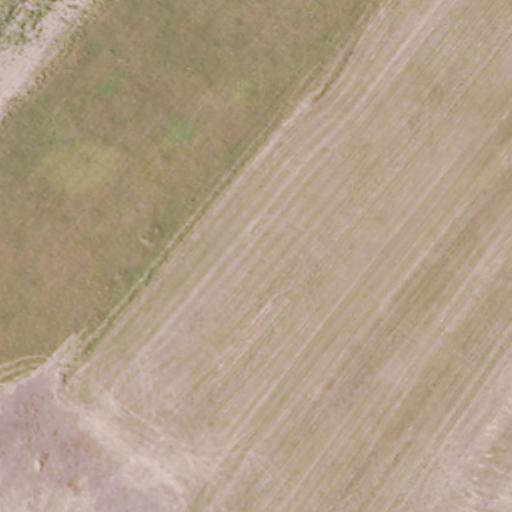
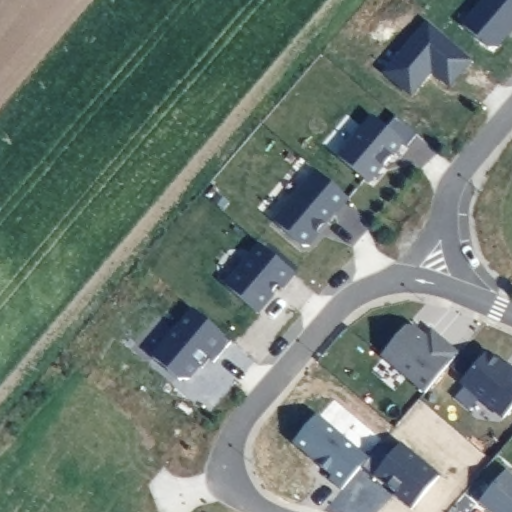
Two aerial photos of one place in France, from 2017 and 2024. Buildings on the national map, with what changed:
new [(482,0),(512,0),(512,33),(500,49),(487,48),(462,24),(482,0)]
new [(384,73),(427,21),(474,61),(449,89),(432,74),(412,98),(384,73)]
new [(339,155),(372,115),(389,129),(397,119),(417,136),(406,149),(403,145),(370,185),(339,155)]
new [(275,222),(317,173),(350,200),(337,215),(335,213),(317,233),(320,238),(311,248),(302,247),(275,222)]
new [(270,295),(272,297),(256,315),(225,289),(260,248),(293,277),(280,291),(277,288),(270,295)]
new [(185,381),(177,382),(150,359),(191,312),(229,344),(211,364),(204,359),(185,381)]
new [(405,330),(412,329),(425,340),(428,335),(435,343),(437,340),(457,357),(424,396),(380,359),(405,330)]
new [(502,422),(460,386),(486,355),(512,377),(512,410),(502,422)]
new [(502,369),(504,367),(512,373),(512,377),(502,369)]
new [(374,476),(362,466),(340,491),(329,480),(332,476),(294,444),(318,416),(370,459),(382,444),(394,454),(402,445),(439,476),(410,510),(374,476)]
new [(512,480),(512,512),(483,512),(477,507),(505,474),(512,480)]

